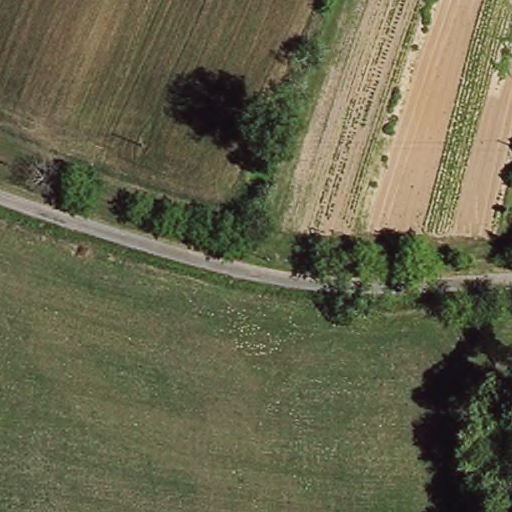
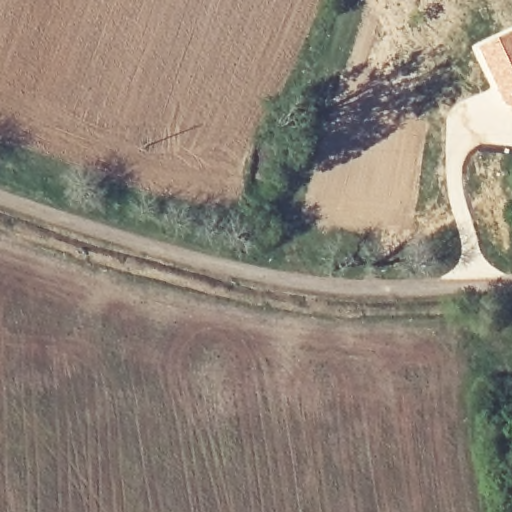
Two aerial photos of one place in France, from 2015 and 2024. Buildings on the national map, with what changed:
new [(512,28),(512,109),(503,106),(489,81),(472,47),(512,28)]

